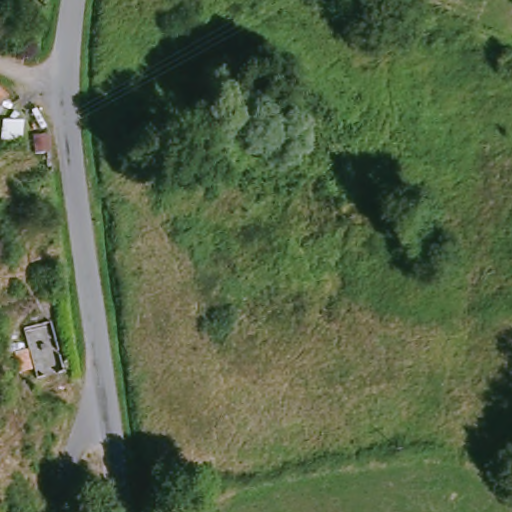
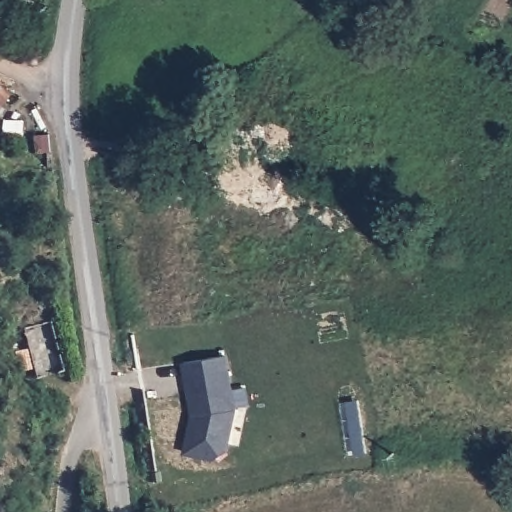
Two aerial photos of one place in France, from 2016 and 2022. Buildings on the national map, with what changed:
unchanged [(5,96),(0,104),(0,92),(5,96)]
unchanged [(1,134),(21,131),(23,146),(3,149),(1,134)]
new [(25,329),(51,322),(64,372),(40,378),(25,329)]
new [(183,363),(229,353),(241,410),(232,446),(219,455),(212,460),(184,453),(191,416),(183,363)]

